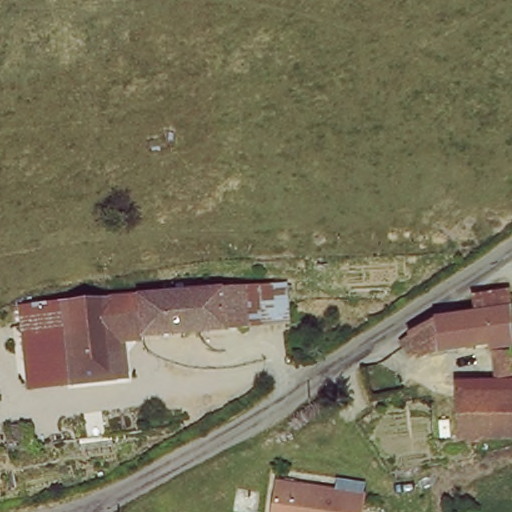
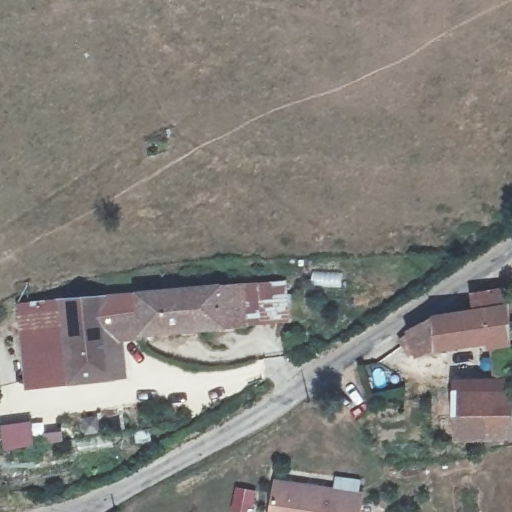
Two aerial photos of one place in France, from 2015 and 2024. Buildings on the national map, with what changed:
unchanged [(236,284),(242,283),(280,278),(286,323),(242,323),(236,284)]
unchanged [(242,323),(115,339),(118,376),(71,382),(58,307),(89,303),(236,284),(242,323)]
unchanged [(455,394),(495,393),(494,339),(410,357),(409,352),(402,354),(399,343),(433,322),(475,318),(475,295),(512,295),(512,435),(457,434),(455,394)]
unchanged [(35,388),(23,312),(58,307),(71,382),(35,388)]
unchanged [(358,496),(355,512),(266,512),(274,477),(358,496)]

